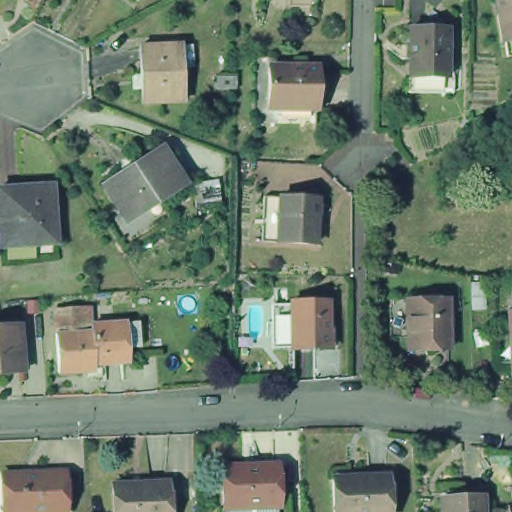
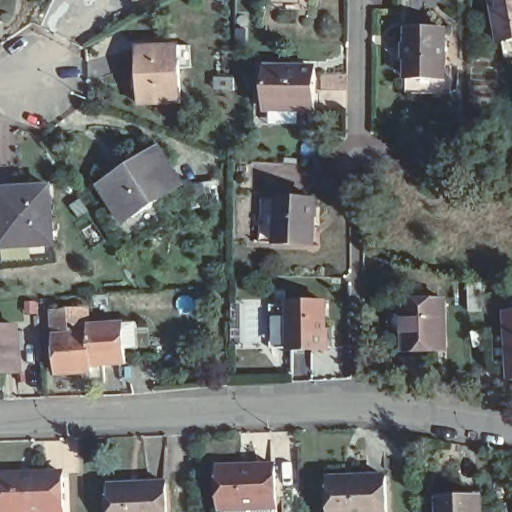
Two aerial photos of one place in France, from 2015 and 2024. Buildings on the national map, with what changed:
unchanged [(504,39),(502,39),(494,0),(512,0),(512,52),(507,54),(504,39)]
unchanged [(449,85),(404,84),(404,70),(405,20),(444,20),(442,70),(448,70),(449,85)]
unchanged [(176,50),(179,106),(139,107),(137,52),(176,50)]
unchanged [(312,75),(313,114),(264,114),(264,74),(312,75)]
unchanged [(163,150),(187,186),(128,225),(104,190),(163,150)]
unchanged [(49,189),(53,246),(0,249),(0,193),(49,189)]
unchanged [(321,245),(284,243),(269,242),(271,198),(286,199),(323,201),(321,245)]
unchanged [(487,312),(471,312),(471,285),(487,285),(487,312)]
unchanged [(449,347),(440,347),(437,350),(408,350),(408,336),(394,336),(394,300),(409,300),(449,301),(449,347)]
unchanged [(328,308),(327,355),(290,355),(290,352),(273,351),(274,310),(291,310),(291,307),(328,308)]
unchanged [(62,382),(62,375),(51,375),(49,337),(48,312),(62,312),(64,336),(84,335),(84,326),(119,325),(120,365),(86,366),(86,373),(83,374),(83,380),(62,382)]
unchanged [(512,380),(508,312),(512,312),(512,380)]
unchanged [(16,330),(19,373),(0,375),(0,331),(16,330)]
unchanged [(270,462),(271,502),(272,512),(218,512),(218,504),(216,463),(270,462)]
unchanged [(60,508),(51,509),(43,509),(6,510),(0,510),(0,470),(59,468),(60,508)]
unchanged [(334,510),(332,470),(388,468),(389,508),(390,512),(358,512),(358,509),(334,510)]
unchanged [(166,512),(111,512),(110,486),(164,485),(166,512)]
unchanged [(483,498),(483,512),(441,512),(441,500),(483,498)]

